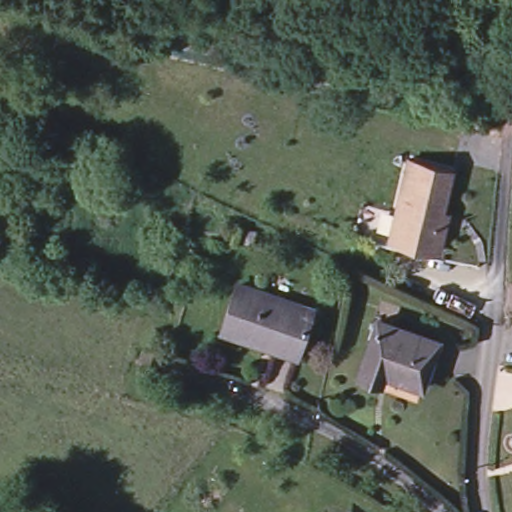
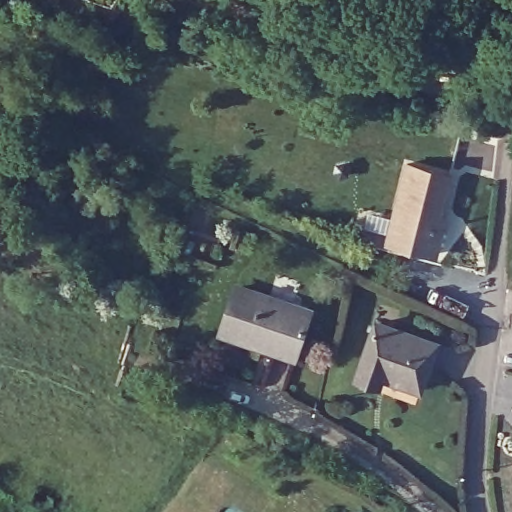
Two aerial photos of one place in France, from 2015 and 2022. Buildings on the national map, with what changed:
unchanged [(444,227),(438,247),(429,252),(395,244),(389,235),(407,162),(451,173),(438,225),(444,227)]
unchanged [(242,231),(255,235),(250,250),(237,245),(242,231)]
unchanged [(255,343),(222,332),(237,287),(311,312),(297,353),(295,358),(254,346),(255,343)]
unchanged [(381,385),(358,377),(377,324),(437,345),(422,389),(384,376),(381,385)]

